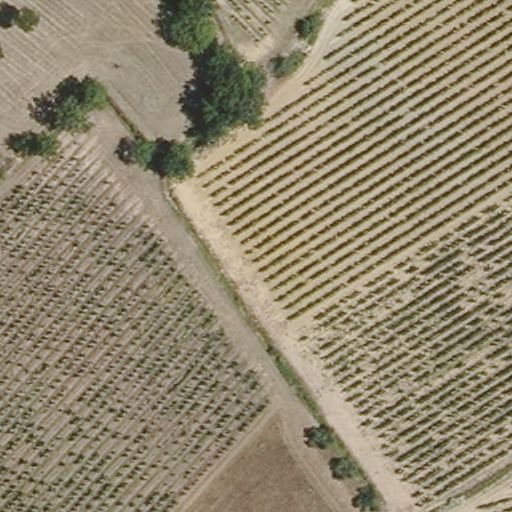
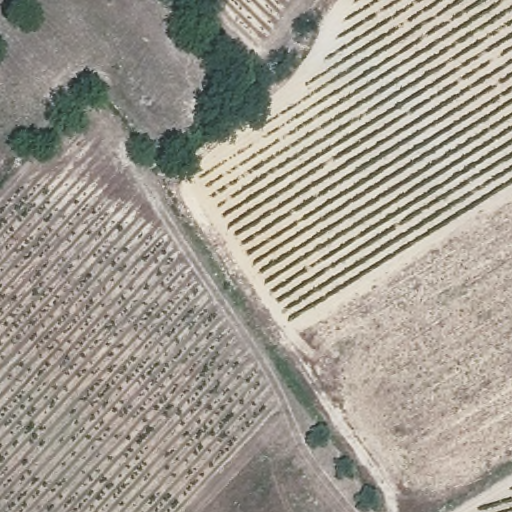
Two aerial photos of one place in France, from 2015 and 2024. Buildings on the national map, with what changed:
[]

